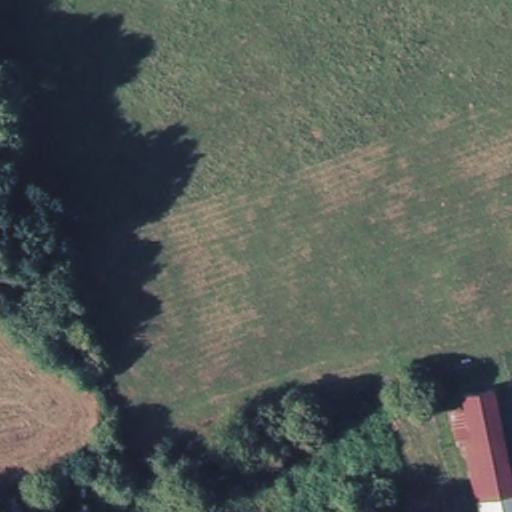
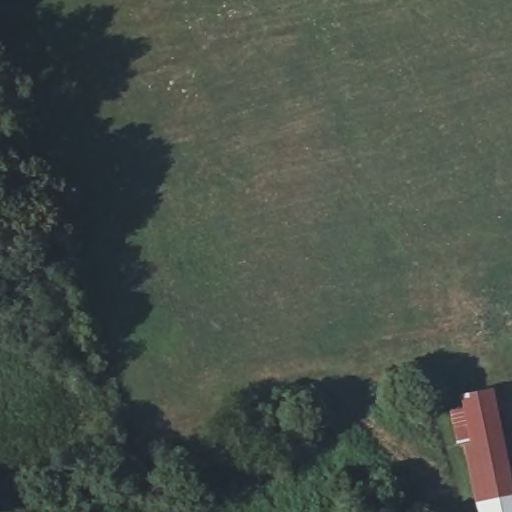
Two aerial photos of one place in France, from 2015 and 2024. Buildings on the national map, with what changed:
unchanged [(486,391),(499,439),(512,481),(512,496),(483,507),(463,449),(470,447),(457,398),(486,391)]
unchanged [(483,507),(512,496),(512,512),(484,512),(483,507)]

